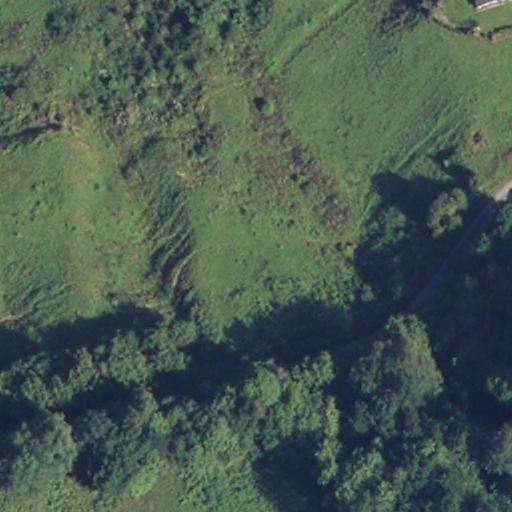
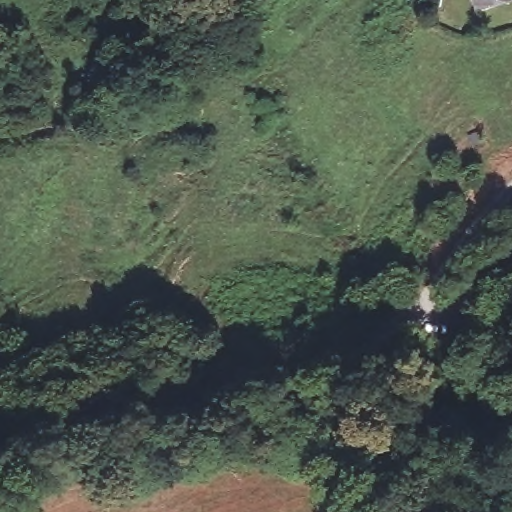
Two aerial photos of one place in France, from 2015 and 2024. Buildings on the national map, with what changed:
unchanged [(472,0),(491,0),(474,6),(472,0)]

